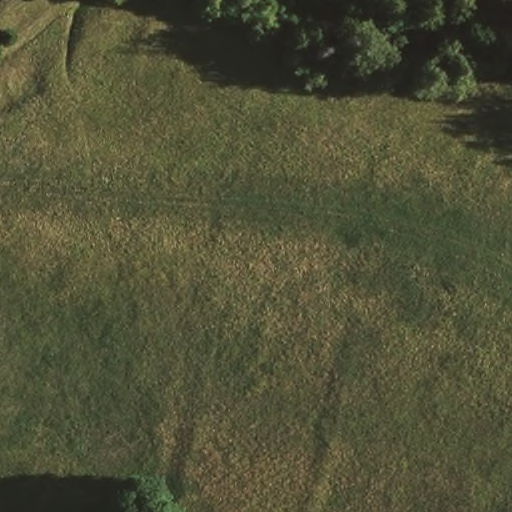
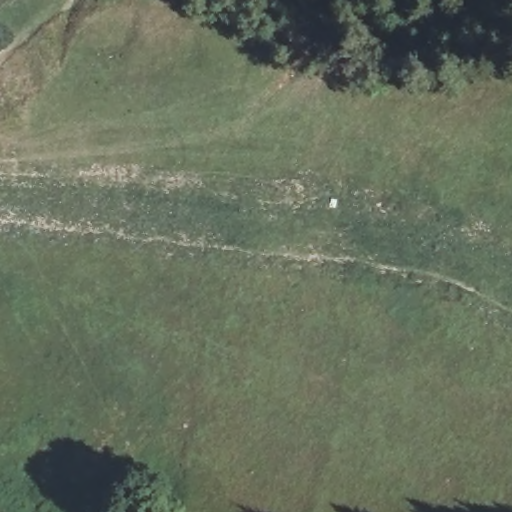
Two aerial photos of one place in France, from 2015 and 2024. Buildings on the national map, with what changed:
[]

